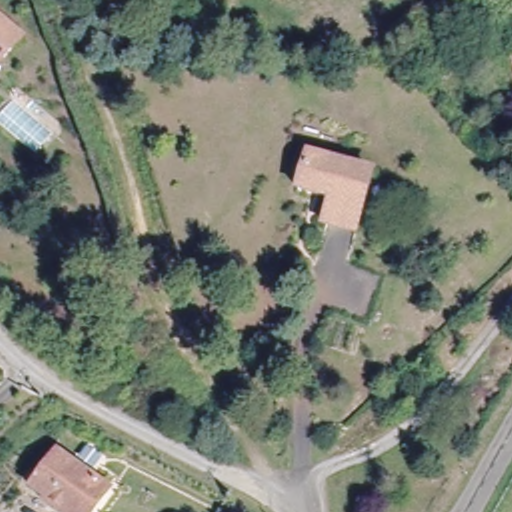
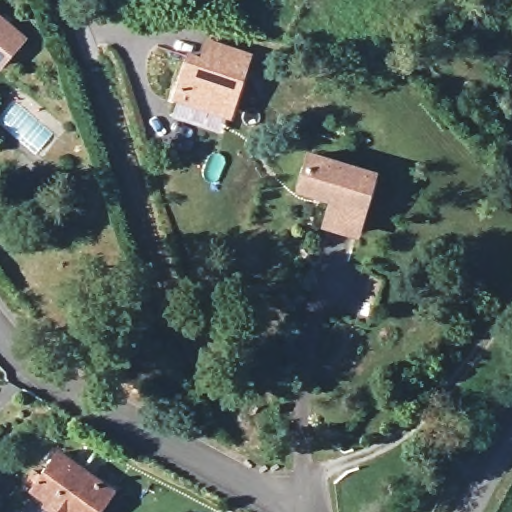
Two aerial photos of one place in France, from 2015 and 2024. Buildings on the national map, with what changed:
unchanged [(0,63),(0,18),(22,37),(0,63)]
new [(251,52),(231,118),(172,100),(188,49),(202,54),(208,36),(251,52)]
unchanged [(506,56),(512,50),(512,63),(506,56)]
unchanged [(327,219),(334,197),(300,187),(302,181),(311,151),(369,169),(375,170),(366,202),(357,228),(327,219)]
unchanged [(97,512),(68,512),(35,489),(59,454),(112,491),(97,512)]

